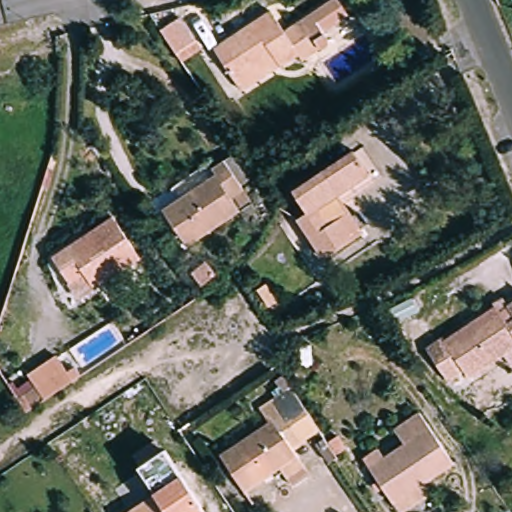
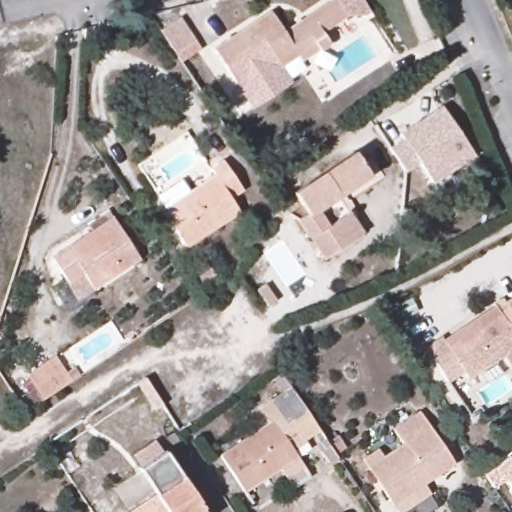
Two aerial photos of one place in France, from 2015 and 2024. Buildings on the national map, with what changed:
unchanged [(235,83),(214,49),(271,12),(284,33),(334,0),(337,0),(348,15),(322,32),(328,41),(328,42),(328,43),(328,45),(327,46),(326,47),(325,48),(324,49),(322,49),(321,49),(319,49),(301,60),(297,55),(280,67),(278,64),(240,90),(235,83)]
unchanged [(180,61),(178,57),(176,54),(160,30),(179,17),(195,41),(199,48),(180,61)]
new [(402,138),(399,134),(440,105),(475,155),(432,184),(420,164),(405,172),(389,148),(402,138)]
unchanged [(354,147),(368,169),(336,190),(362,229),(324,254),(297,214),(290,210),(302,201),(293,188),(354,147)]
unchanged [(212,171),(224,163),(237,154),(252,177),(240,186),(242,190),(250,201),(238,210),(186,246),(162,211),(215,176),(212,171)]
unchanged [(93,225),(113,211),(117,217),(144,258),(83,298),(57,258),(97,231),(93,225)]
unchanged [(265,285),(276,301),(268,307),(256,290),(265,285)]
unchanged [(510,367),(502,354),(467,378),(463,371),(447,381),(425,349),(440,338),(443,341),(496,306),(494,303),(502,297),(504,301),(512,296),(512,366),(510,367)]
unchanged [(22,372),(51,353),(61,367),(69,362),(75,372),(38,396),(20,408),(11,395),(30,383),(22,372)]
unchanged [(269,418),(259,403),(282,387),(274,376),(283,370),(284,372),(291,382),(311,412),(319,424),(313,428),(291,443),(308,468),(291,480),(279,463),(243,486),(220,451),(269,418)]
unchanged [(403,512),(398,504),(388,489),(382,492),(377,484),(382,481),(368,459),(380,450),(385,458),(408,444),(398,429),(423,413),(457,463),(429,483),(435,492),(406,512),(403,512)]
unchanged [(329,457),(322,447),(323,442),(328,439),(337,431),(345,444),(335,449),(337,452),(329,457)]
unchanged [(205,510),(205,512),(139,512),(160,499),(142,473),(145,471),(138,460),(159,446),(166,457),(169,455),(206,510),(205,510)]
new [(507,481),(494,490),(482,472),(509,454),(512,459),(512,488),(507,481)]

